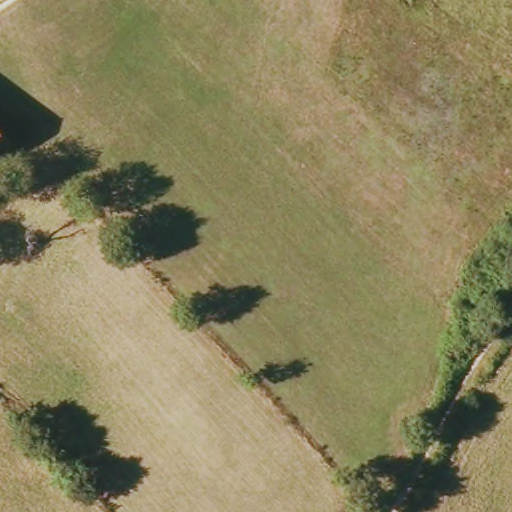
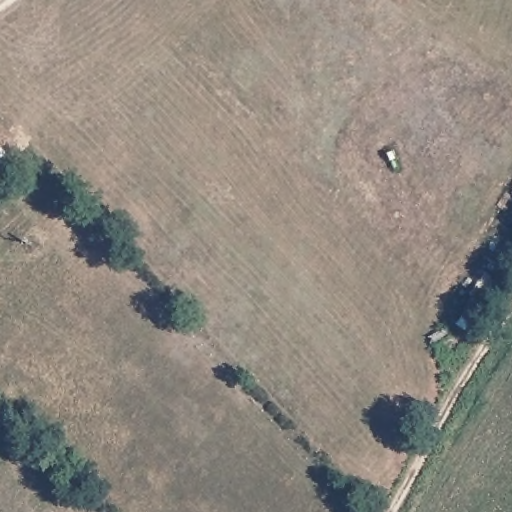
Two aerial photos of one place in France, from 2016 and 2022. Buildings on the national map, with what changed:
unchanged [(1,136),(0,137),(0,135),(1,136)]

